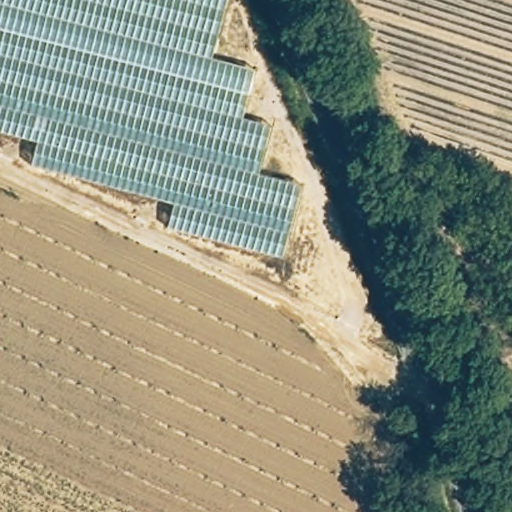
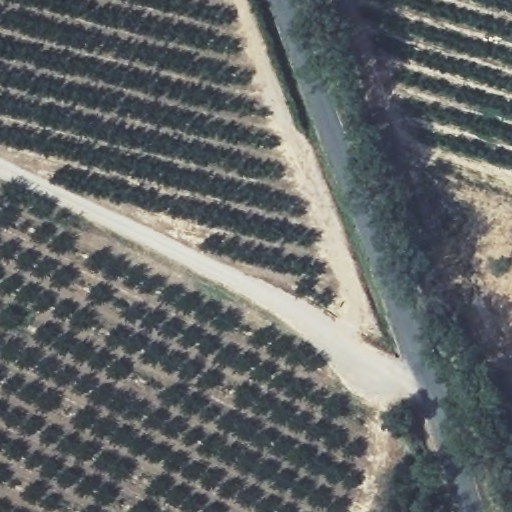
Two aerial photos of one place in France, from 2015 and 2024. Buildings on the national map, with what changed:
demolished [(28,165),(34,138),(0,130),(0,0),(220,0),(208,56),(252,72),(242,121),(268,126),(259,176),(297,187),(281,257),(166,228),(173,201),(28,165)]

